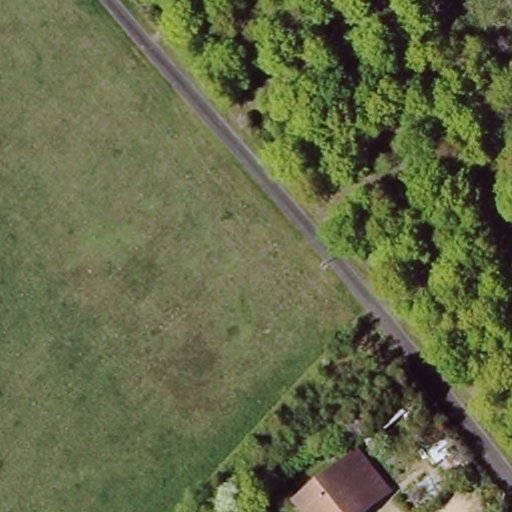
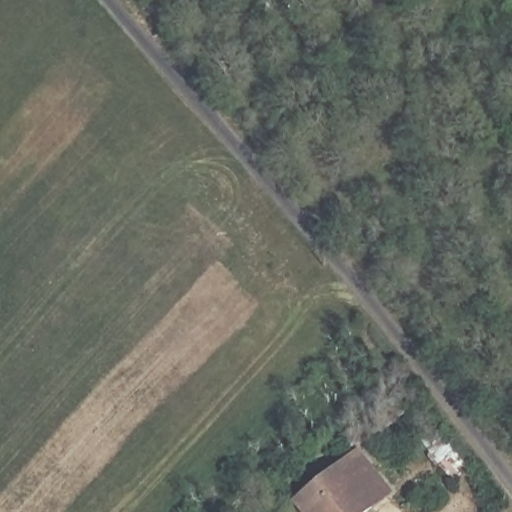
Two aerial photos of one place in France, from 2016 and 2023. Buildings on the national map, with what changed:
unchanged [(393,500),(374,512),(297,512),(288,501),(358,446),(393,500)]

